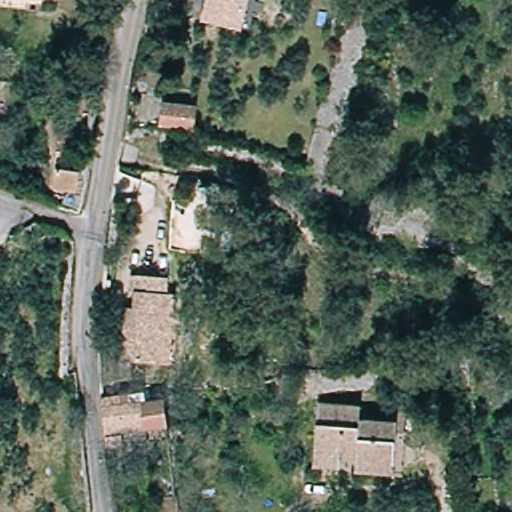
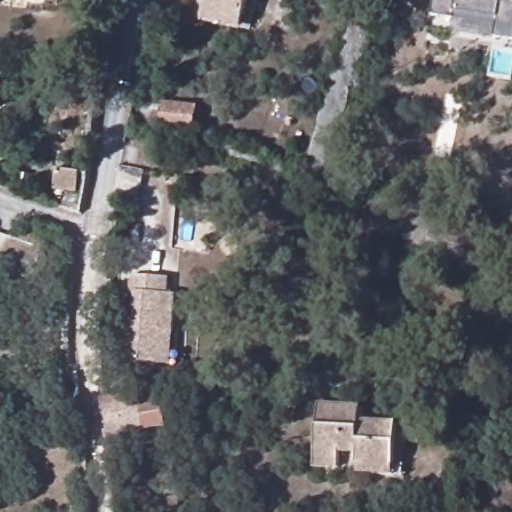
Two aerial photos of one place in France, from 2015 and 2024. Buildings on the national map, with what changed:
unchanged [(234,33),(198,25),(204,0),(243,0),(234,33)]
new [(452,32),(454,18),(431,15),(434,0),(512,0),(512,40),(452,32)]
unchanged [(192,112),(193,131),(161,131),(161,111),(192,112)]
unchanged [(50,168),(75,172),(73,193),(48,189),(50,168)]
unchanged [(120,362),(123,330),(131,331),(134,293),(129,292),(130,277),(169,279),(168,295),(174,296),(170,366),(120,362)]
unchanged [(103,412),(101,398),(101,397),(127,395),(144,393),(145,402),(164,399),(168,429),(148,432),(149,446),(108,449),(103,412)]
unchanged [(357,412),(356,425),(393,428),(389,481),(351,477),(351,461),(334,459),(332,475),(308,474),(315,409),(357,412)]
unchanged [(171,482),(172,512),(152,512),(151,483),(171,482)]

